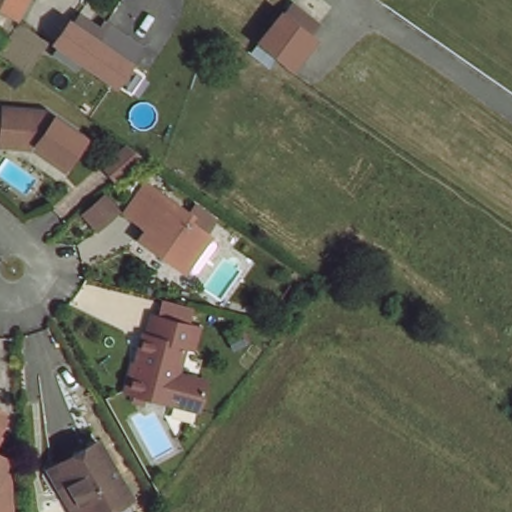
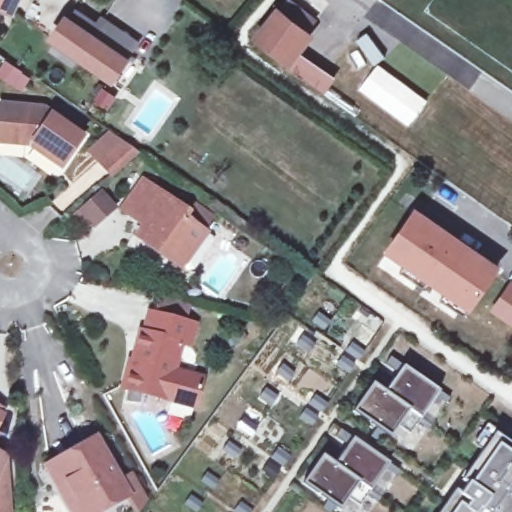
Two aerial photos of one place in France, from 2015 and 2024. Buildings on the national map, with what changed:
unchanged [(0,0),(14,0),(7,12),(0,8),(0,0)]
unchanged [(117,71),(107,85),(74,61),(67,71),(47,57),(55,49),(50,45),(70,14),(92,30),(120,50),(112,62),(120,67),(117,71)]
unchanged [(285,64),(260,46),(279,17),(305,35),(285,64)]
unchanged [(23,108),(40,109),(44,105),(85,134),(62,164),(31,142),(17,140),(0,139),(0,101),(23,103),(23,108)]
unchanged [(115,178),(102,163),(126,141),(141,153),(115,178)]
unchanged [(186,214),(180,219),(202,235),(177,267),(141,241),(147,232),(122,213),(143,181),(186,214)]
new [(429,230),(432,226),(442,233),(470,252),(480,260),(477,263),(494,275),(463,320),(439,304),(445,295),(428,283),(422,292),(398,275),(404,267),(387,255),(412,219),(429,230)]
new [(510,286),(512,288),(512,327),(491,313),(510,286)]
unchanged [(191,370),(184,400),(156,393),(129,387),(127,392),(119,391),(120,385),(114,383),(127,325),(131,326),(135,307),(174,315),(182,317),(177,337),(170,336),(169,335),(162,364),(191,370)]
new [(372,381),(384,390),(402,363),(438,389),(408,432),(397,423),(389,435),(352,408),(372,381)]
new [(453,488),(458,491),(465,480),(460,477),(493,430),(512,443),(512,512),(436,512),(453,488)]
new [(321,453),(333,461),(352,435),(387,461),(357,504),(346,495),(338,506),(302,480),(321,453)]
unchanged [(44,466),(52,460),(94,436),(127,491),(94,512),(72,512),(44,466)]
unchanged [(4,512),(0,512),(0,481),(2,481),(4,512)]

